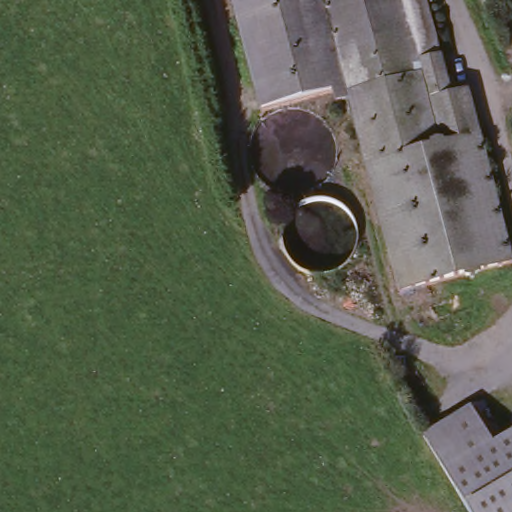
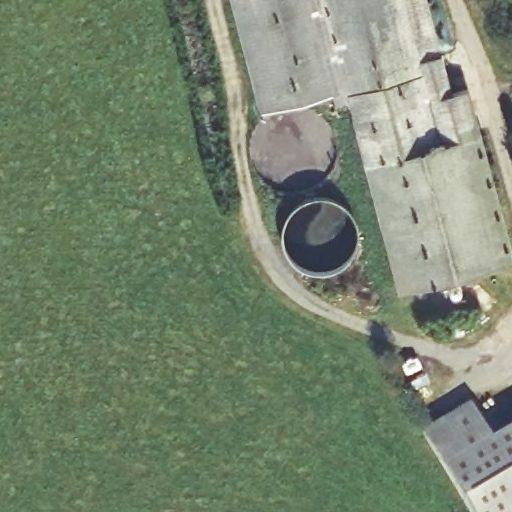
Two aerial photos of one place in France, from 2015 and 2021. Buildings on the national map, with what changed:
unchanged [(396,298),(344,105),(331,108),(328,97),(258,115),(227,0),(420,0),(436,60),(446,98),(463,94),(474,137),(509,268),(396,298)]
unchanged [(469,409),(491,446),(512,433),(512,512),(463,512),(418,440),(469,409)]

